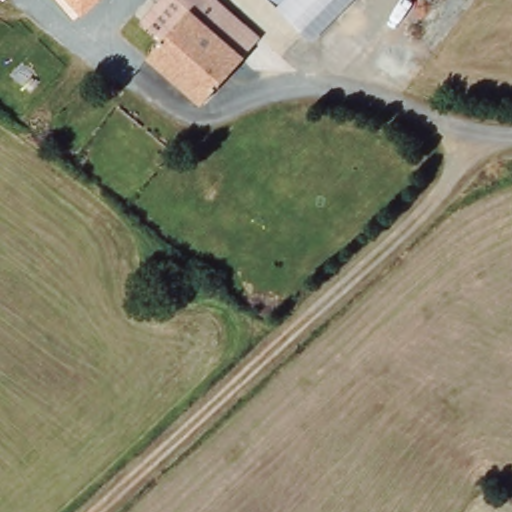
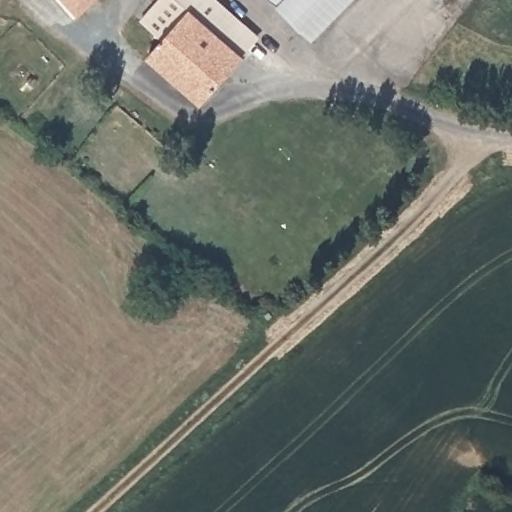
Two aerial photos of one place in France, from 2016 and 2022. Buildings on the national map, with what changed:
unchanged [(65,0),(100,0),(80,17),(65,0)]
unchanged [(221,0),(261,39),(233,69),(204,102),(127,33),(158,0),(221,0)]
unchanged [(272,0),(357,0),(316,42),(272,0)]

